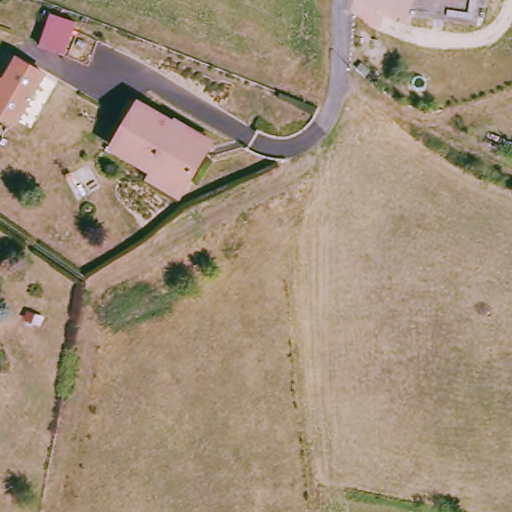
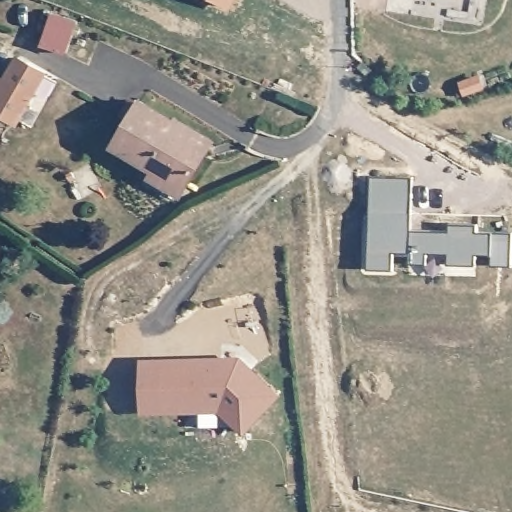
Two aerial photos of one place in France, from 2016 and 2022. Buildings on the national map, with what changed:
unchanged [(55,14),(77,25),(64,53),(41,42),(55,14)]
unchanged [(0,89),(16,58),(44,72),(19,125),(0,115),(0,89)]
unchanged [(147,171),(111,151),(136,105),(174,126),(177,120),(215,139),(208,151),(192,178),(185,192),(179,200),(144,180),(147,171)]
new [(369,178),(410,179),(410,214),(402,215),(402,232),(447,233),(446,225),(476,226),(476,233),(512,235),(512,249),(511,269),(490,269),(490,257),(475,256),(474,268),(445,267),(446,257),(426,255),(426,266),(408,265),(408,255),(392,254),(393,271),(367,271),(369,178)]
new [(219,411),(141,415),(140,360),(240,357),(280,395),(244,435),(219,411)]

